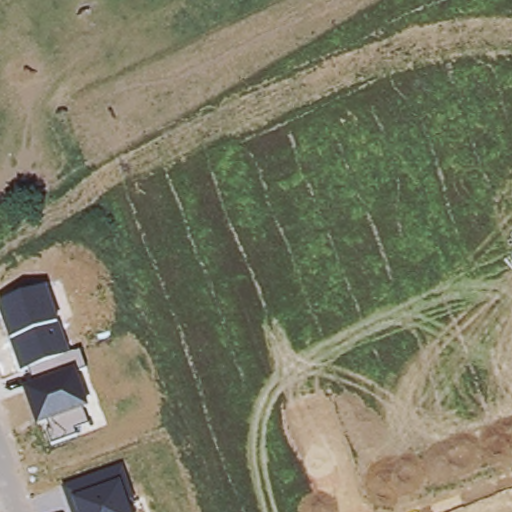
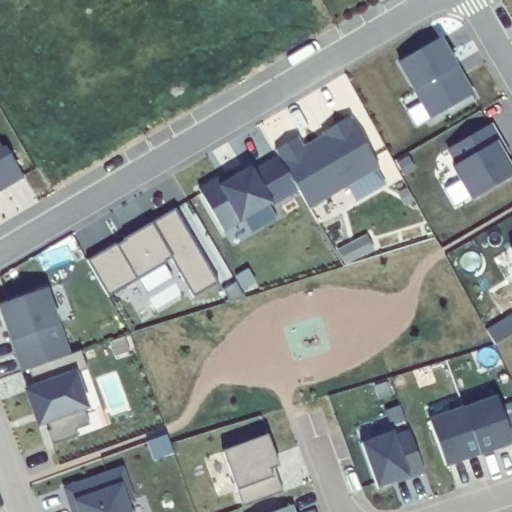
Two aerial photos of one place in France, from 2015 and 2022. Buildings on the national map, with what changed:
new [(433,122),(400,66),(441,42),(457,70),(454,72),(459,81),(462,79),(474,97),(433,122)]
new [(299,190),(274,205),(240,224),(222,233),(198,192),(217,181),(250,164),(275,150),(299,137),(304,145),(352,117),(380,168),(310,209),(299,190)]
new [(451,167),(457,164),(448,149),(492,123),(511,154),(507,157),(512,167),(512,176),(470,200),(451,167)]
new [(9,146),(24,177),(0,191),(0,144),(2,149),(9,146)]
new [(89,261),(116,245),(152,224),(176,210),(217,282),(194,296),(172,258),(138,278),(109,293),(89,261)]
new [(511,251),(512,250),(512,253),(511,251)]
unchanged [(48,432),(52,431),(50,422),(36,427),(24,387),(35,383),(29,368),(20,373),(10,341),(0,313),(0,305),(47,290),(59,325),(70,354),(80,351),(86,369),(76,373),(90,409),(82,412),(87,425),(75,429),(77,436),(52,445),(48,432)]
new [(499,401),(512,438),(512,446),(481,457),(480,457),(465,413),(499,401)]
unchanged [(464,412),(465,413),(480,457),(446,469),(430,425),(464,412)]
new [(379,492),(362,446),(395,434),(397,440),(411,435),(426,475),(411,481),(399,485),(379,492)]
new [(285,495),(245,510),(224,454),(269,437),(281,469),(276,471),(279,478),(285,495)]
unchanged [(62,487),(121,467),(133,501),(128,503),(131,512),(70,512),(62,487)]
unchanged [(294,512),(284,512),(292,509),(294,512)]

